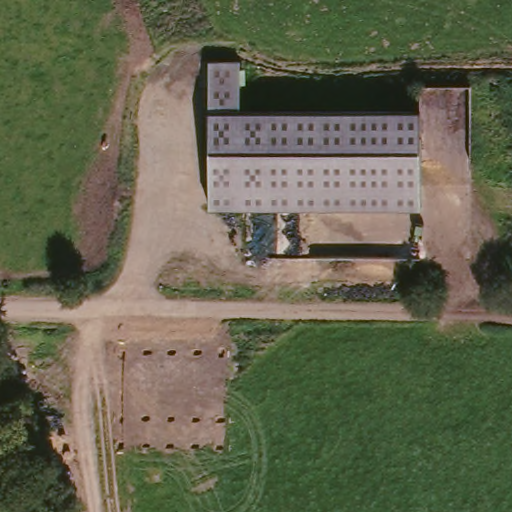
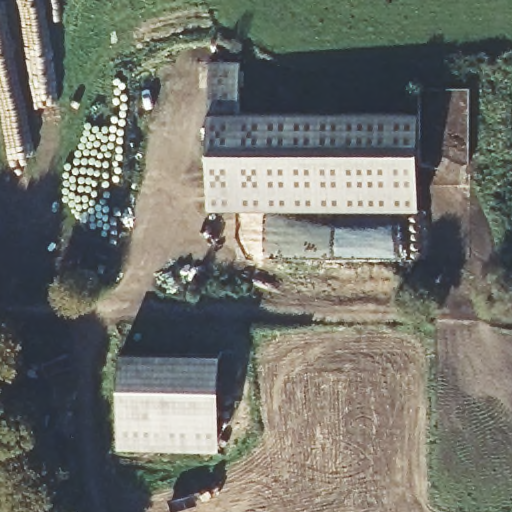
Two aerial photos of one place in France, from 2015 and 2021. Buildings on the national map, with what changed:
unchanged [(418,114),(416,167),(416,209),(266,206),(206,204),(210,59),(241,60),(240,110),(418,114)]
new [(121,447),(122,352),(223,354),(221,449),(121,447)]

